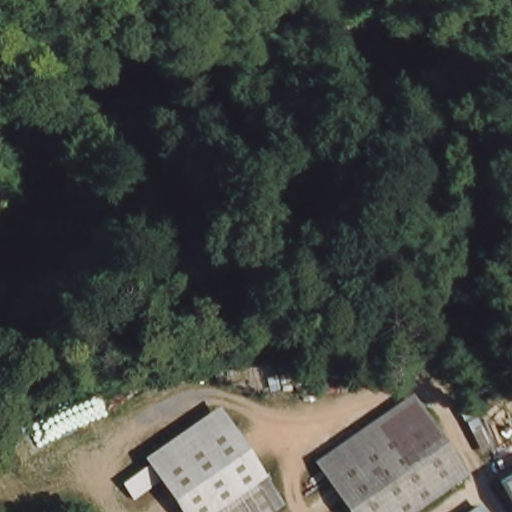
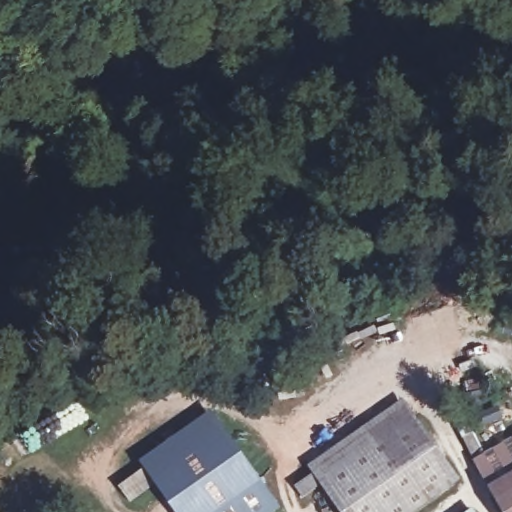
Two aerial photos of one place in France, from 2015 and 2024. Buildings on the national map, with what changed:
unchanged [(335,453),(399,406),(410,421),(412,423),(397,434),(357,465),(333,483),(319,465),(335,453)]
unchanged [(219,512),(175,512),(140,464),(213,410),(263,481),(219,512)]
unchanged [(357,465),(397,434),(412,423),(454,481),(412,512),(354,512),(333,483),(357,465)]
new [(489,487),(474,461),(512,439),(512,474),(489,487)]
unchanged [(503,512),(489,487),(512,474),(512,512),(503,512)]
unchanged [(274,512),(219,512),(263,481),(280,508),(274,512)]

